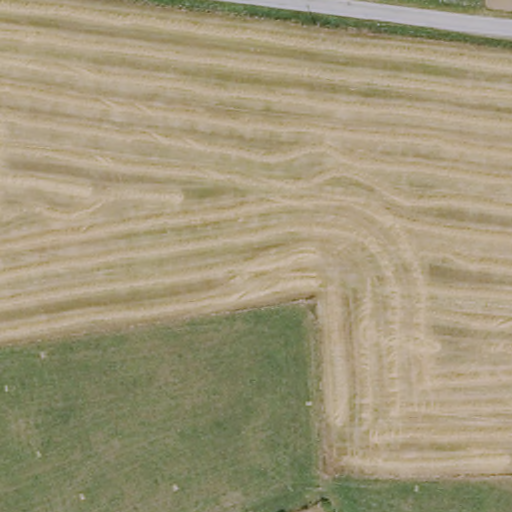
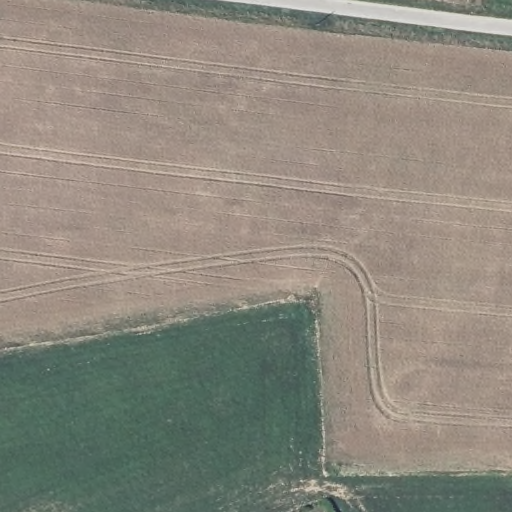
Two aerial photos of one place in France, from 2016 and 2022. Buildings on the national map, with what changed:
[]

